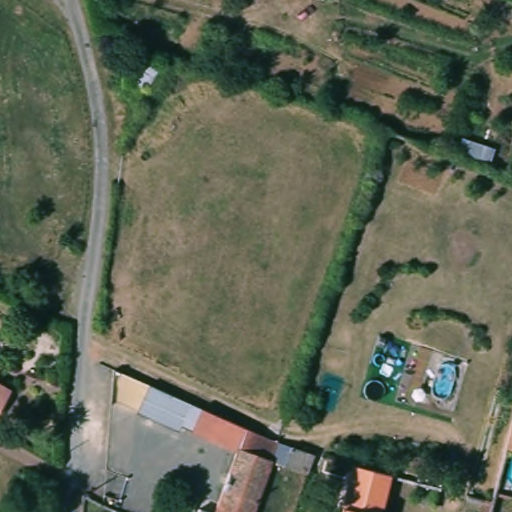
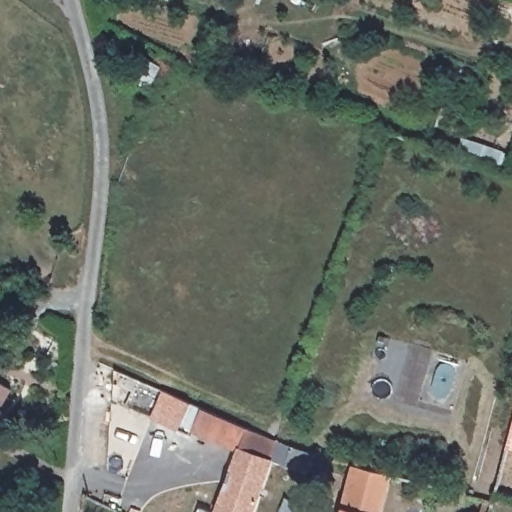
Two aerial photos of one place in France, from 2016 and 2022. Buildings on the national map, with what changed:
unchanged [(201,408),(192,433),(181,429),(179,433),(139,415),(149,385),(201,408)]
unchanged [(9,395),(0,407),(0,389),(9,395)]
unchanged [(192,433),(201,408),(249,429),(240,450),(238,449),(236,452),(192,433)]
unchanged [(238,449),(240,450),(249,429),(276,442),(278,442),(252,512),(213,512),(236,452),(238,449)]
unchanged [(512,434),(512,445),(510,444),(512,434)]
unchanged [(285,463),(290,447),(316,456),(311,468),(309,473),(285,463)]
unchanged [(392,473),(381,512),(341,512),(354,462),(392,473)]
unchanged [(477,512),(481,500),(489,502),(486,512),(477,512)]
unchanged [(209,512),(196,512),(198,507),(209,512)]

